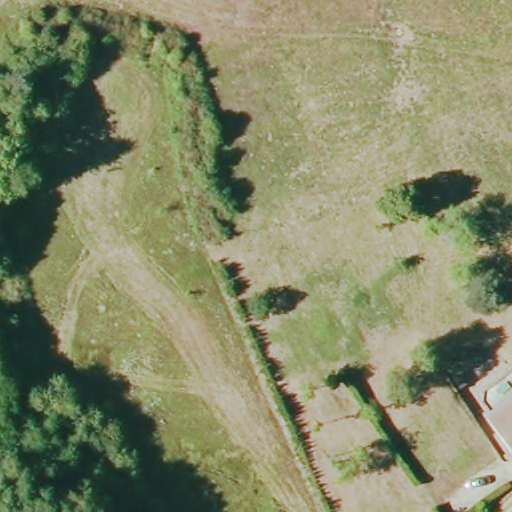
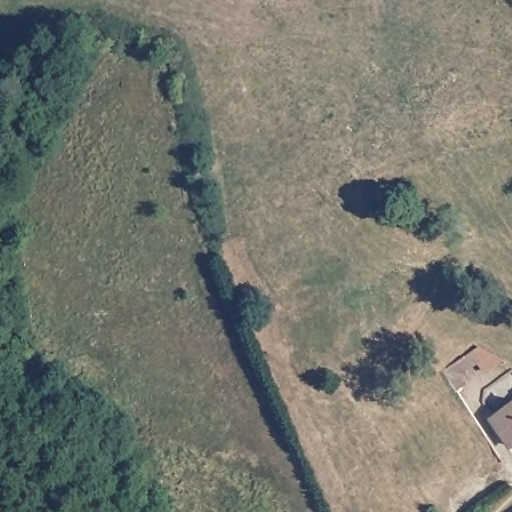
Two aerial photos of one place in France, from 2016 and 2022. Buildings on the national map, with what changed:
unchanged [(447,385),(475,363),(485,376),(467,390),(470,397),(460,408),(447,385)]
unchanged [(497,422),(512,410),(512,444),(497,422)]

